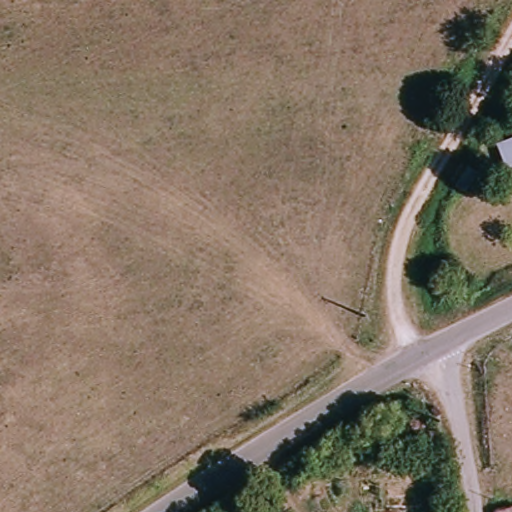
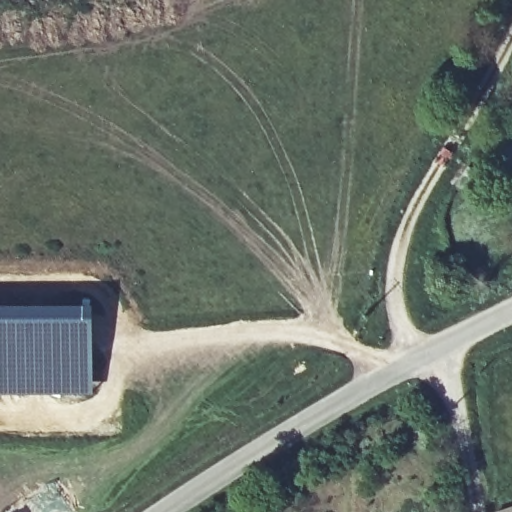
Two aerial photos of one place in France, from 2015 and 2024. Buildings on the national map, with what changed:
unchanged [(512,172),(502,175),(494,142),(512,137),(512,172)]
new [(91,306),(92,395),(0,396),(0,307),(91,306)]
unchanged [(493,511),(512,505),(512,512),(493,512),(493,511)]

